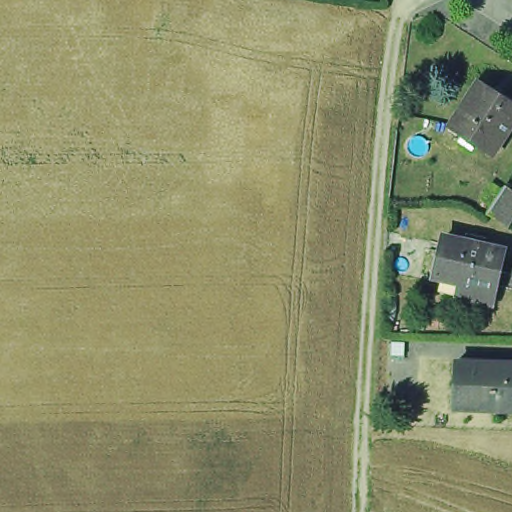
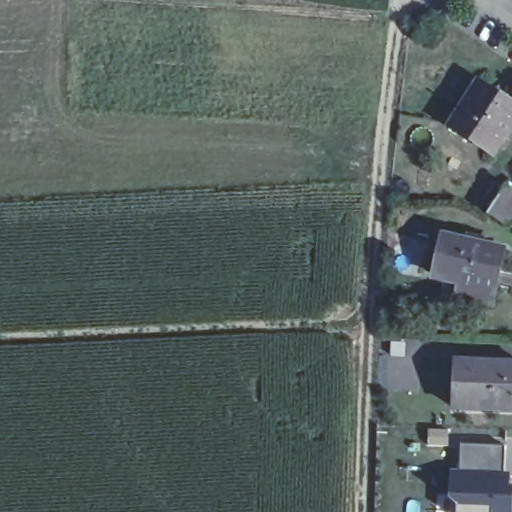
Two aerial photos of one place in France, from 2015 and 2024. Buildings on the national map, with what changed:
unchanged [(472,80),(485,89),(488,84),(512,99),(512,112),(485,151),(448,126),(444,124),(453,109),(472,80)]
unchanged [(512,208),(504,219),(490,210),(508,183),(512,185),(512,208)]
unchanged [(446,270),(439,269),(446,231),(502,240),(490,304),(467,299),(442,294),(446,270)]
unchanged [(512,405),(452,404),(453,359),(512,361),(512,405)]
new [(512,487),(512,512),(456,512),(456,507),(450,499),(450,472),(460,472),(460,444),(505,446),(504,473),(509,473),(510,487),(512,487)]

